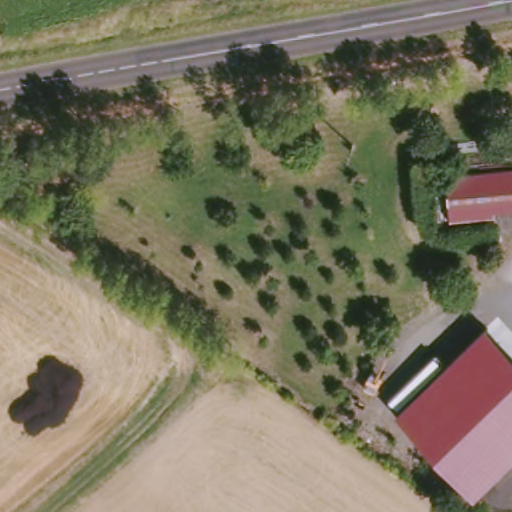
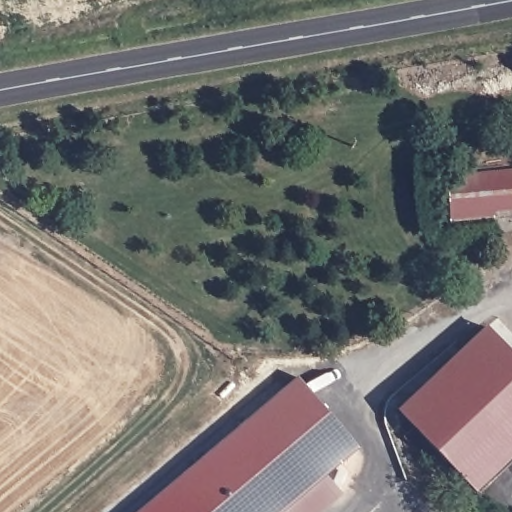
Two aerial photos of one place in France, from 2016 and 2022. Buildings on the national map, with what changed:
unchanged [(440,173),(512,164),(512,213),(449,219),(440,173)]
unchanged [(485,322),(512,350),(512,454),(473,490),(397,406),(485,322)]
new [(141,512),(298,378),(357,446),(279,512),(141,512)]

